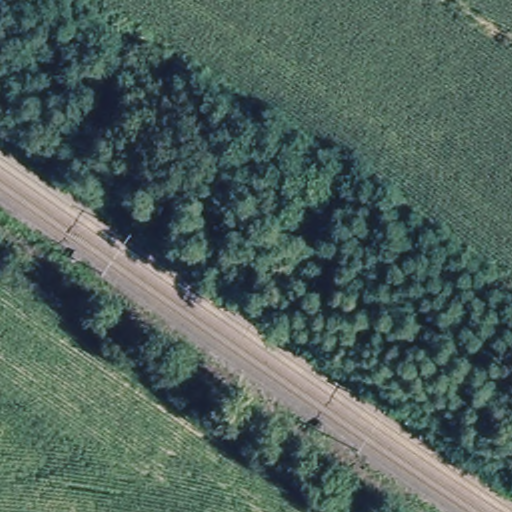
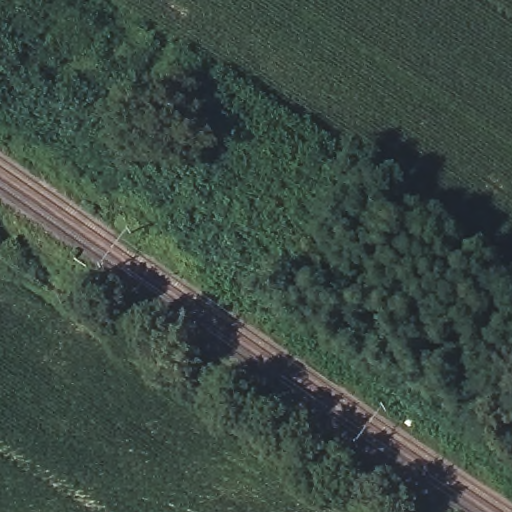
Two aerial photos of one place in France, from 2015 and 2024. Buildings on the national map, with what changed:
[]

